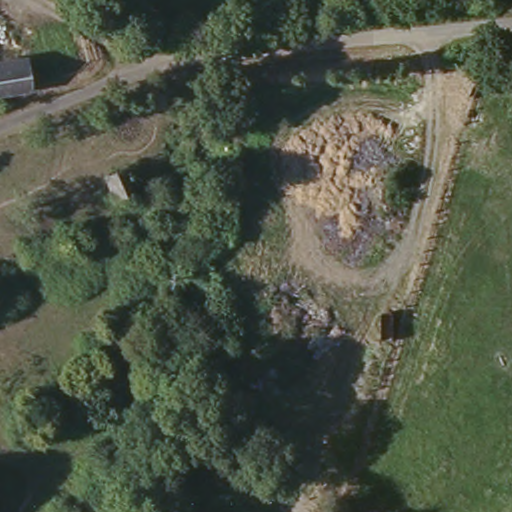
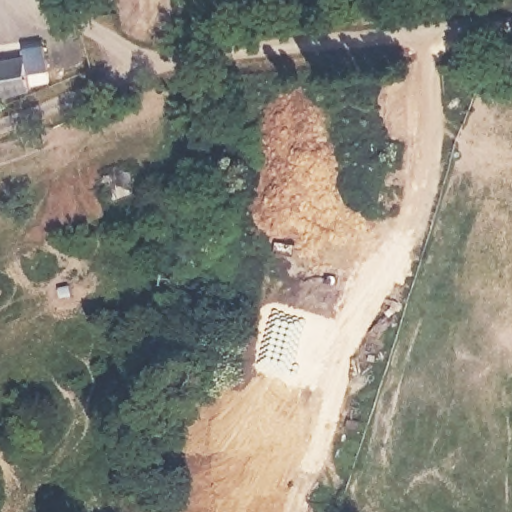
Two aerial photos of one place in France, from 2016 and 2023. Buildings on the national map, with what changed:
unchanged [(34,78),(0,89),(0,56),(24,48),(34,78)]
unchanged [(133,192),(112,198),(107,180),(128,173),(133,192)]

